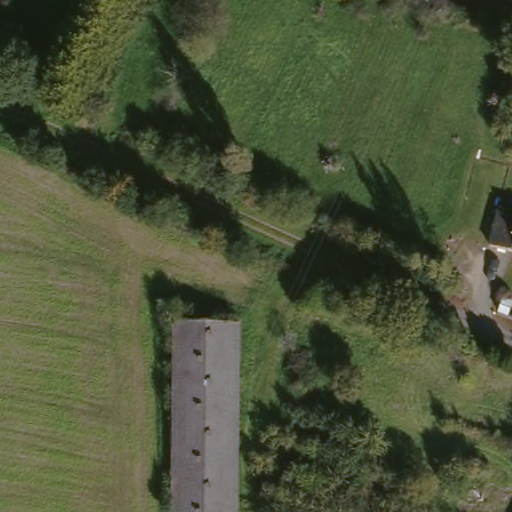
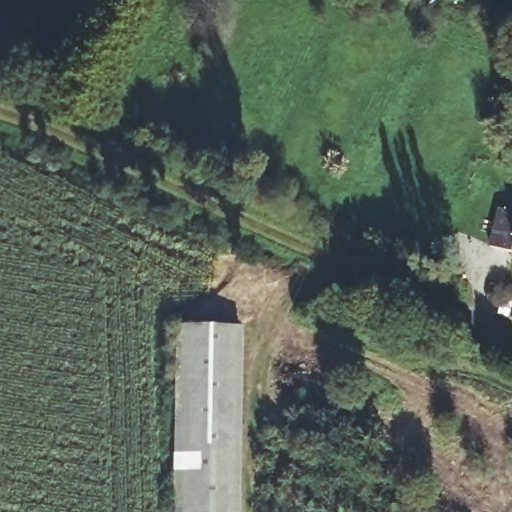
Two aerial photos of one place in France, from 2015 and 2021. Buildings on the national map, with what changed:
unchanged [(512,203),(512,241),(497,237),(507,202),(512,203)]
unchanged [(181,323),(245,323),(242,512),(179,512),(181,323)]
unchanged [(441,512),(416,512),(417,483),(441,484),(441,512)]
unchanged [(505,500),(506,483),(512,483),(512,500),(505,500)]

